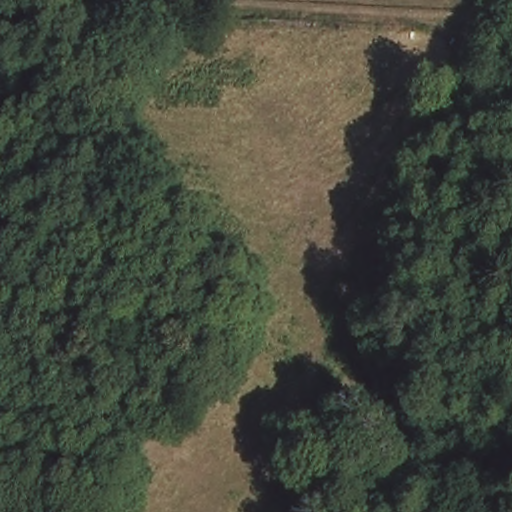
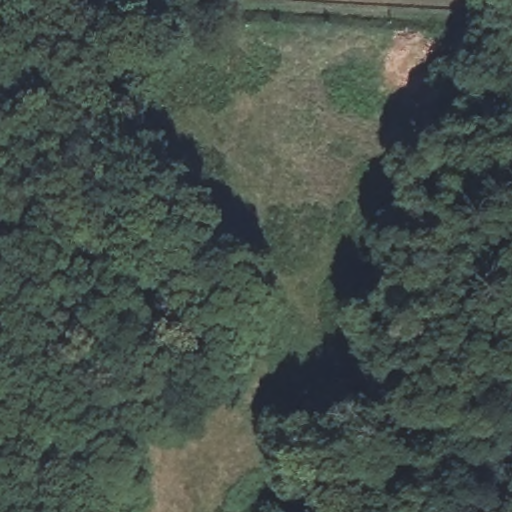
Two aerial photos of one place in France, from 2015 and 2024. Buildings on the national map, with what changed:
[]

